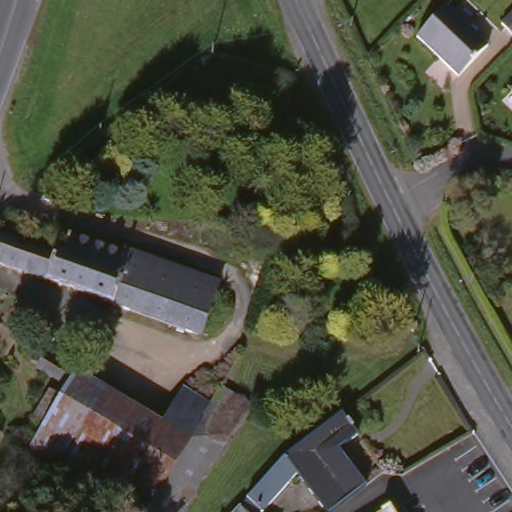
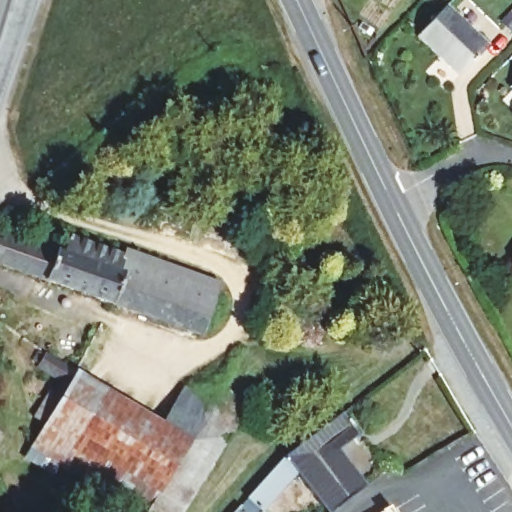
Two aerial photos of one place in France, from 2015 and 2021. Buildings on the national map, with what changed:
unchanged [(432,53),(419,41),(448,13),(460,26),(486,52),(458,80),(432,53)]
unchanged [(512,96),(512,98),(511,97),(512,96)]
unchanged [(511,114),(512,114),(512,122),(511,121),(511,114)]
unchanged [(223,344),(198,336),(196,341),(0,274),(0,243),(44,258),(46,250),(57,254),(61,243),(120,264),(124,255),(237,297),(223,344)]
unchanged [(53,399),(59,403),(64,394),(32,373),(41,359),(155,432),(179,394),(206,410),(220,381),(221,382),(246,397),(184,512),(118,512),(36,460),(51,436),(36,425),(53,399)]
unchanged [(334,411),(354,435),(336,452),(361,483),(343,500),(329,512),(324,512),(296,478),(268,512),(254,512),(246,506),(284,455),(286,453),(334,411)]
unchanged [(2,444),(0,446),(0,443),(2,444)]

